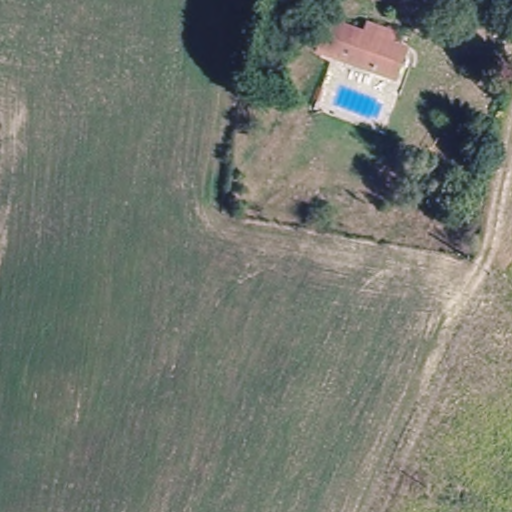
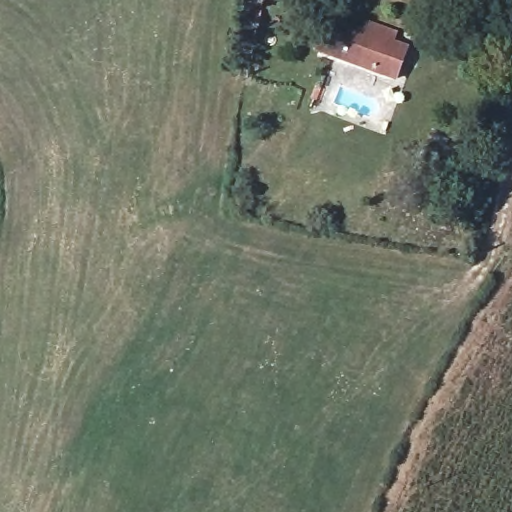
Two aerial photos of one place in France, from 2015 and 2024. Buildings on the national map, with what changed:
unchanged [(413,39),(396,76),(315,48),(331,7),(413,39)]

